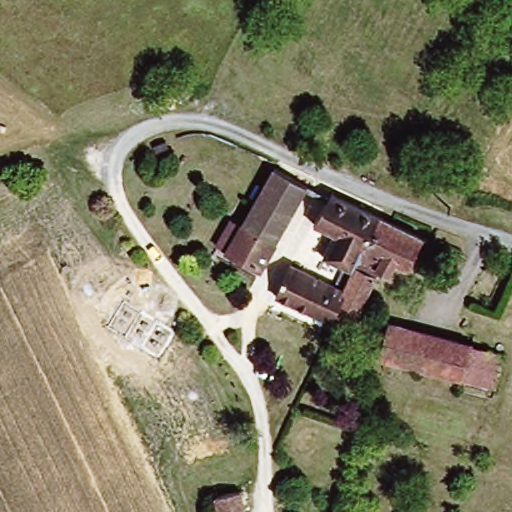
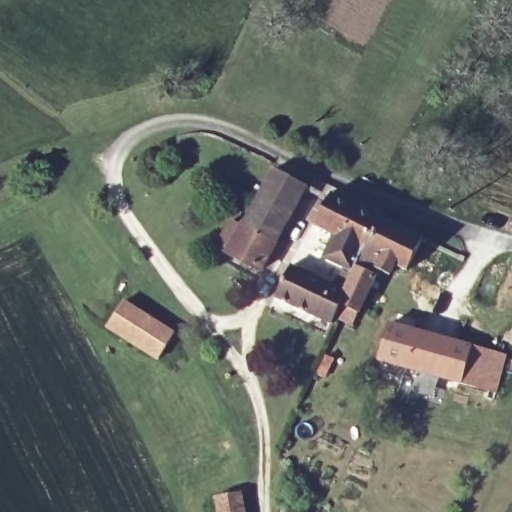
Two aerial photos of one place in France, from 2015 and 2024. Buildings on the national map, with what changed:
unchanged [(235,229),(268,164),(300,179),(267,244),(235,229)]
unchanged [(349,312),(332,304),(327,317),(272,291),(285,264),(328,284),(335,269),(317,261),(328,231),(310,221),(322,191),(325,188),(341,197),(375,214),(352,261),(348,269),(367,277),(349,312)]
unchanged [(352,261),(375,214),(422,234),(403,274),(390,268),(385,277),(352,261)]
unchanged [(235,229),(267,244),(253,271),(222,256),(235,229)]
new [(107,328),(125,301),(175,332),(157,360),(107,328)]
unchanged [(503,351),(493,386),(405,361),(399,370),(391,369),(384,364),(383,354),(378,353),(388,318),(503,351)]
unchanged [(243,512),(213,512),(211,502),(241,499),(243,512)]

